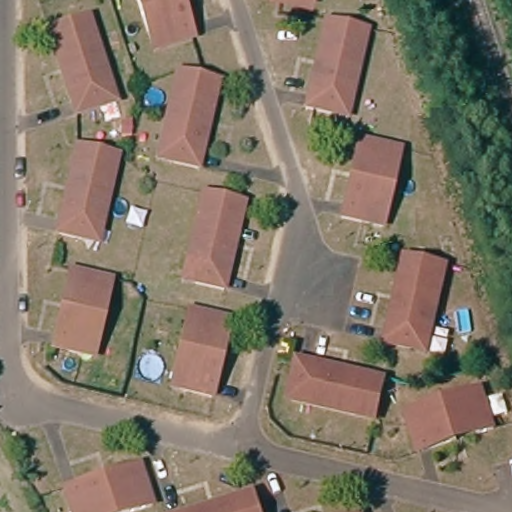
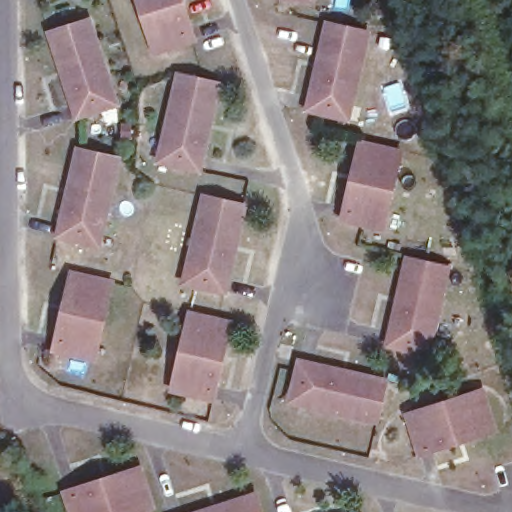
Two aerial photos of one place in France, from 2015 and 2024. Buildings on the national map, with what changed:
unchanged [(151,37),(139,0),(184,0),(184,3),(197,42),(168,51),(156,55),(151,37)]
unchanged [(300,1),(298,0),(313,0),(312,3),(300,1)]
unchanged [(107,110),(79,119),(65,78),(56,50),(51,34),(91,20),(114,92),(119,106),(107,110)]
unchanged [(338,118),(309,112),(319,69),(325,41),(329,24),(370,34),(354,107),(350,121),(338,118)]
unchanged [(197,173),(155,163),(172,90),(175,76),(188,79),(217,85),(207,128),(201,156),(197,173)]
unchanged [(374,228),(345,221),(354,182),(358,160),(362,143),(404,153),(390,212),(386,230),(374,228)]
unchanged [(90,244),(61,238),(70,195),(76,167),(79,150),(121,159),(106,232),(103,246),(90,244)]
unchanged [(228,289),(186,280),(203,207),(206,192),(219,195),(247,202),(238,244),(231,272),(228,289)]
unchanged [(419,353),(390,347),(399,304),(405,276),(409,259),(451,268),(434,342),(431,356),(419,353)]
unchanged [(85,359),(56,352),(65,312),(70,291),(74,274),(115,284),(101,343),(97,361),(85,359)]
unchanged [(216,401),(175,392),(188,332),(192,314),(205,317),(234,324),(225,363),(220,384),(216,401)]
unchanged [(290,390),(297,362),(339,371),(367,378),(384,382),(375,423),(302,406),(287,403),(290,390)]
unchanged [(422,456),(413,427),(409,415),(427,409),(485,390),(498,431),(482,436),(461,443),(422,456)]
unchanged [(106,476),(127,470),(143,464),(156,505),(134,512),(75,512),(67,489),(106,476)]
unchanged [(237,496),(254,490),(261,512),(187,512),(210,505),(237,496)]

